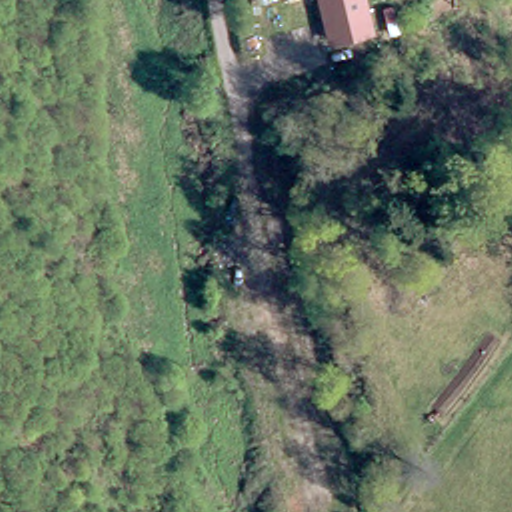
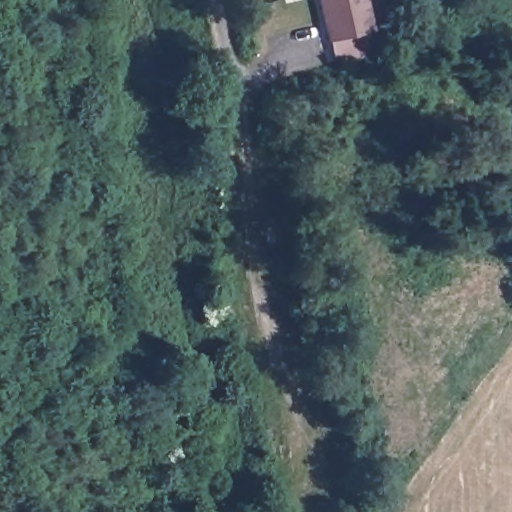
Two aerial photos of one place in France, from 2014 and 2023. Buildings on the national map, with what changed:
unchanged [(320,0),(364,0),(368,14),(325,24),(320,0)]

